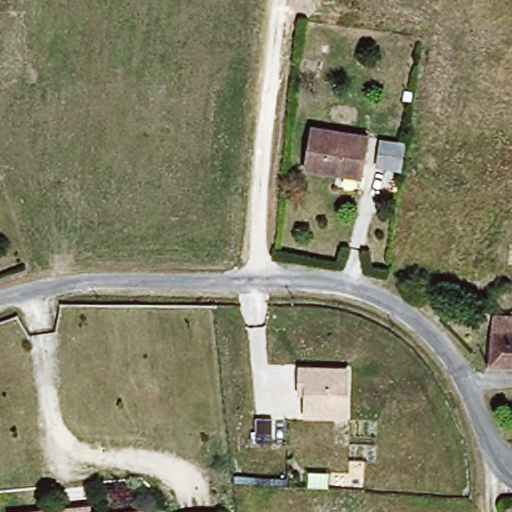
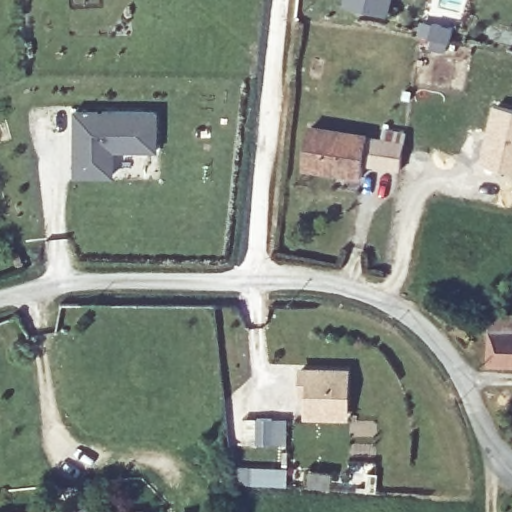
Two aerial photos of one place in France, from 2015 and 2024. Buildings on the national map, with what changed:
new [(344,5),(344,0),(395,0),(391,16),(344,5)]
new [(499,104),(512,107),(512,170),(485,164),(499,104)]
new [(155,111),(155,150),(113,150),(112,178),(75,177),(75,111),(155,111)]
unchanged [(317,132),(372,136),(368,176),(314,172),(317,132)]
unchanged [(378,156),(405,158),(401,186),(377,185),(378,156)]
unchanged [(497,308),(512,310),(512,367),(489,364),(497,308)]
unchanged [(347,418),(303,417),(304,397),(297,397),(297,367),(348,368),(347,418)]
unchanged [(70,510),(93,507),(93,512),(46,512),(70,510)]
unchanged [(145,511),(146,512),(136,512),(145,511)]

